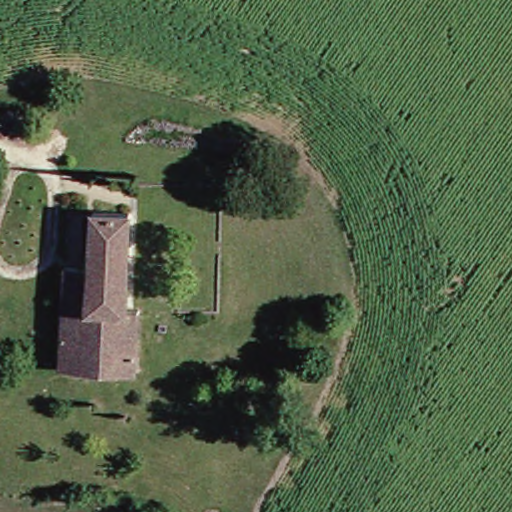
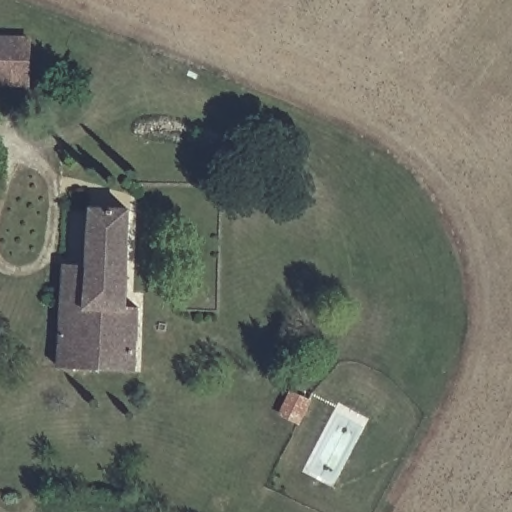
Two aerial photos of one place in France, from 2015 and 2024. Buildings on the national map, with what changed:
new [(30,86),(15,86),(0,86),(0,40),(16,40),(31,41),(30,86)]
unchanged [(92,275),(95,208),(142,211),(136,307),(148,309),(144,371),(66,361),(70,273),(92,275)]

